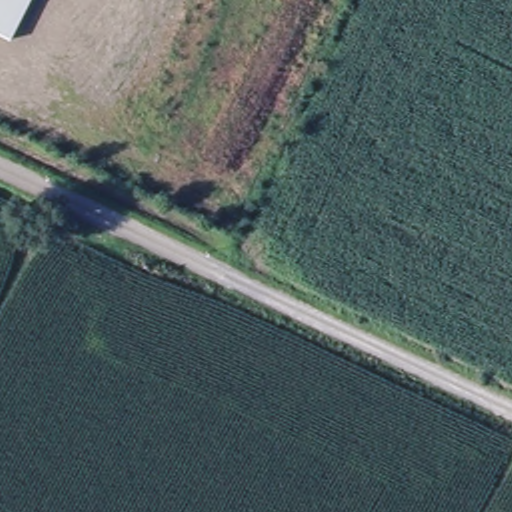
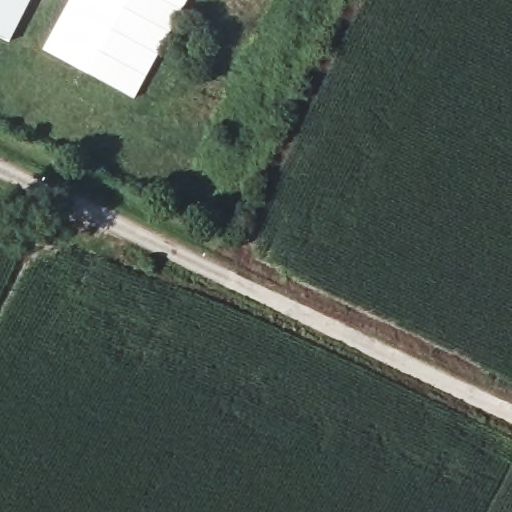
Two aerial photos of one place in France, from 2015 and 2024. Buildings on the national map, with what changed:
unchanged [(0,35),(0,0),(31,0),(10,41),(0,35)]
new [(188,0),(177,22),(134,99),(42,49),(68,0),(188,0)]

